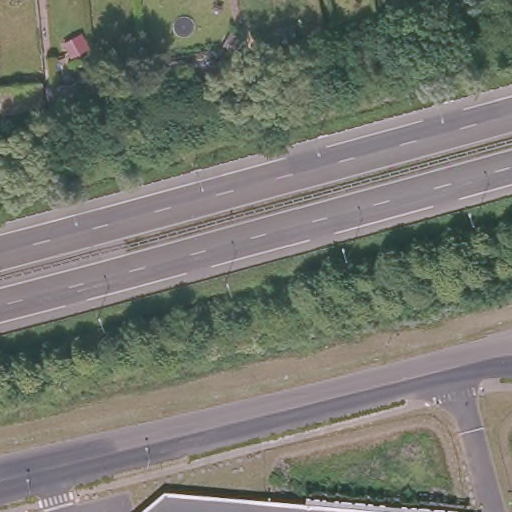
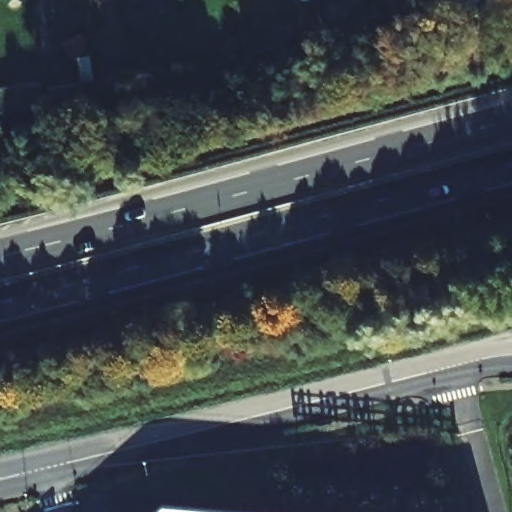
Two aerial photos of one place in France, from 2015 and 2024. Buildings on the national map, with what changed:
unchanged [(244,512),(156,512),(164,505),(244,512)]

